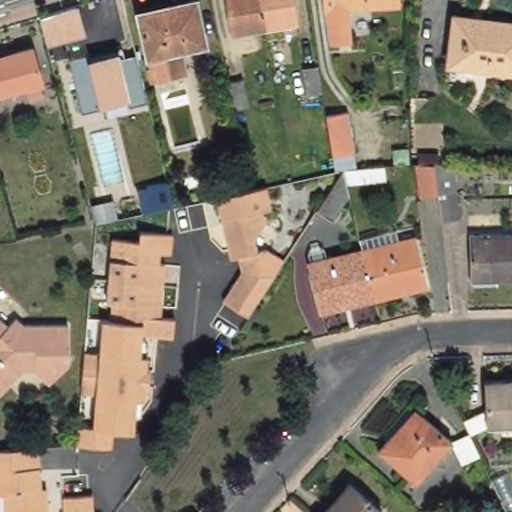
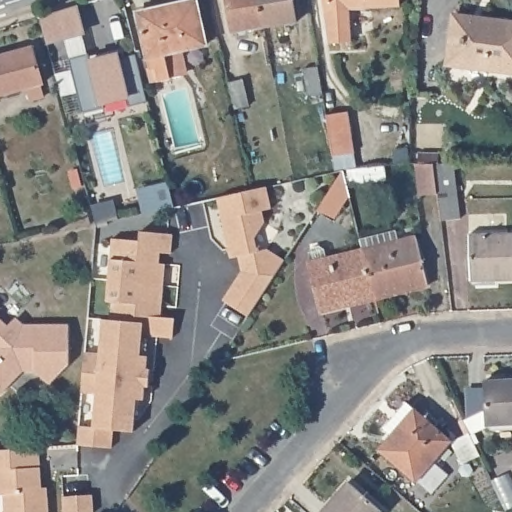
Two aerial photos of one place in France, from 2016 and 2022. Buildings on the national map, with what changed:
unchanged [(195,0),(204,42),(177,47),(182,67),(177,72),(150,79),(136,9),(176,0),(195,0)]
unchanged [(235,37),(227,0),(259,0),(266,31),(235,37)]
unchanged [(266,31),(259,0),(294,0),(298,24),(266,31)]
unchanged [(399,0),(400,13),(351,14),(352,47),(331,47),(323,5),(323,0),(399,0)]
unchanged [(77,5),(87,35),(47,47),(40,17),(77,5)]
unchanged [(512,26),(512,74),(450,63),(457,16),(512,26)]
unchanged [(41,83),(0,95),(0,57),(29,47),(41,83)]
unchanged [(69,61),(87,57),(87,61),(120,52),(121,60),(136,56),(147,100),(130,107),(129,100),(100,107),(84,112),(69,61)]
unchanged [(321,66),(325,94),(311,96),(307,69),(321,66)]
unchanged [(245,79),(251,106),(236,109),(230,82),(245,79)]
unchanged [(350,112),(357,154),(336,157),(329,115),(350,112)]
unchanged [(464,221),(445,223),(442,196),(422,198),(419,167),(438,167),(457,167),(464,221)]
unchanged [(347,172),(352,193),(337,221),(320,211),(342,174),(347,172)]
unchanged [(170,186),(176,212),(156,217),(150,190),(170,186)]
unchanged [(234,256),(222,202),(227,201),(227,200),(271,190),(272,190),(277,212),(268,214),(271,226),(261,242),(264,255),(273,252),(289,264),(252,320),(227,303),(246,275),(242,259),(235,261),(234,256)]
unchanged [(164,309),(161,308),(160,320),(177,322),(174,341),(144,337),(141,357),(149,358),(147,372),(151,372),(149,389),(145,388),(144,402),(137,401),(132,434),(112,432),(111,450),(76,446),(77,441),(78,427),(93,428),(96,396),(82,394),(81,394),(85,364),(86,353),(101,355),(104,321),(112,322),(114,304),(109,303),(116,240),(143,243),(144,234),(176,237),(174,256),(163,255),(162,266),(168,267),(164,309)]
unchanged [(512,236),(512,282),(472,283),(471,237),(512,236)]
unchanged [(419,240),(431,290),(411,294),(411,292),(377,300),(366,253),(419,240)]
unchanged [(352,308),(352,306),(323,312),(312,266),(366,253),(377,300),(377,302),(352,308)]
unchanged [(0,306),(0,304),(1,305),(0,306)]
unchanged [(17,316),(27,324),(66,324),(67,364),(49,383),(36,371),(23,371),(2,392),(0,390),(0,315),(10,324),(17,316)]
unchanged [(512,380),(512,422),(485,423),(483,382),(512,380)]
unchanged [(393,436),(417,410),(452,442),(416,482),(378,448),(391,434),(393,436)]
unchanged [(43,498),(49,498),(49,512),(5,512),(4,496),(0,496),(0,453),(41,450),(43,498)]
unchanged [(350,482),(382,510),(380,512),(323,512),(350,482)]
unchanged [(94,497),(94,512),(65,512),(64,498),(94,497)]

